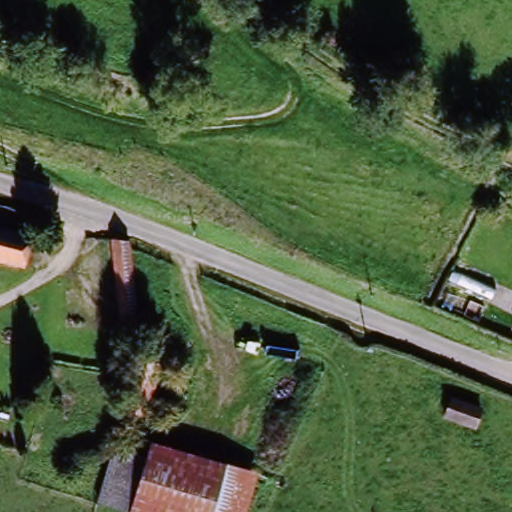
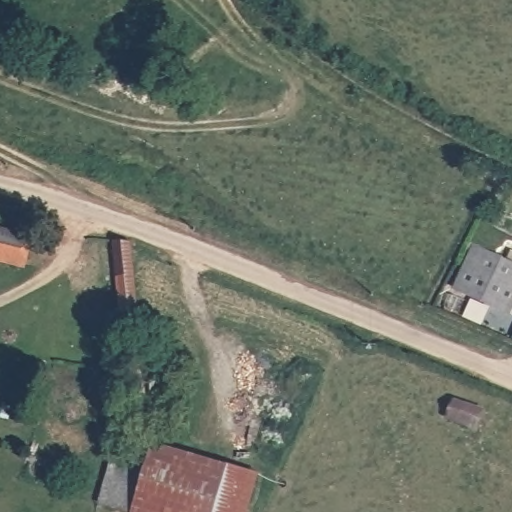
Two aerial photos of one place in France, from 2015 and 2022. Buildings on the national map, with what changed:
unchanged [(17,268),(0,262),(0,228),(26,237),(17,268)]
unchanged [(132,244),(141,329),(122,330),(112,245),(132,244)]
new [(475,250),(512,266),(512,323),(465,303),(458,296),(475,250)]
unchanged [(136,404),(143,369),(165,372),(160,407),(156,431),(131,426),(136,404)]
unchanged [(448,417),(455,404),(480,413),(475,428),(448,417)]
unchanged [(0,425),(0,415),(12,419),(10,427),(0,425)]
unchanged [(127,512),(150,443),(166,448),(147,512),(127,512)]
unchanged [(240,470),(224,512),(147,512),(166,448),(240,470)]
unchanged [(260,476),(249,512),(224,512),(240,470),(260,476)]

